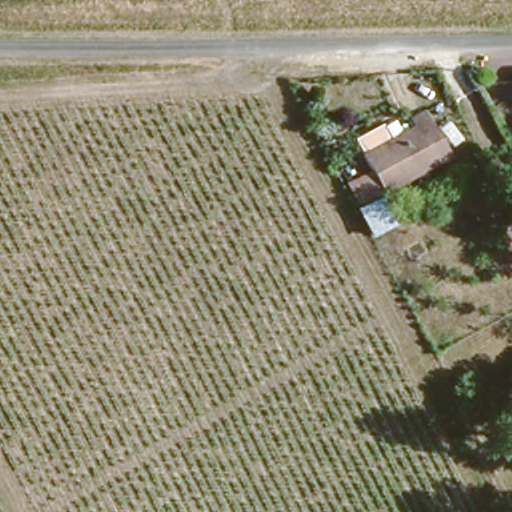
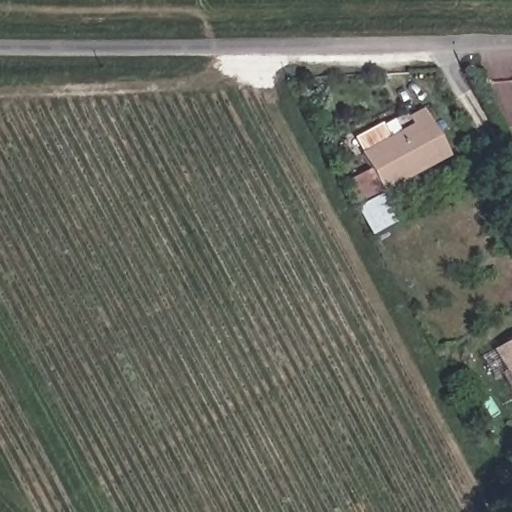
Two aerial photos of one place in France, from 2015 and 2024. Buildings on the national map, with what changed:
unchanged [(361,139),(412,120),(406,105),(427,97),(449,154),(378,182),(361,139)]
new [(493,350),(512,339),(512,387),(493,350)]

